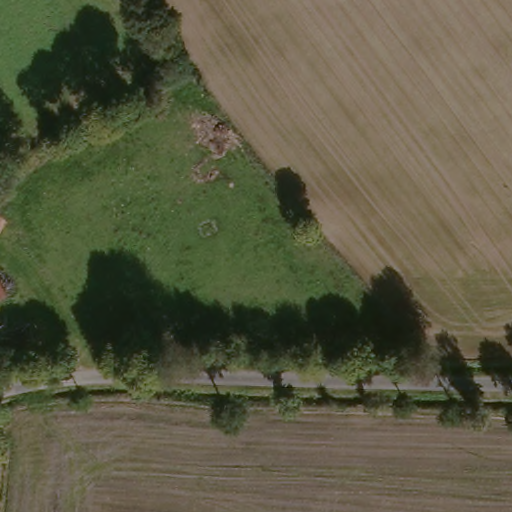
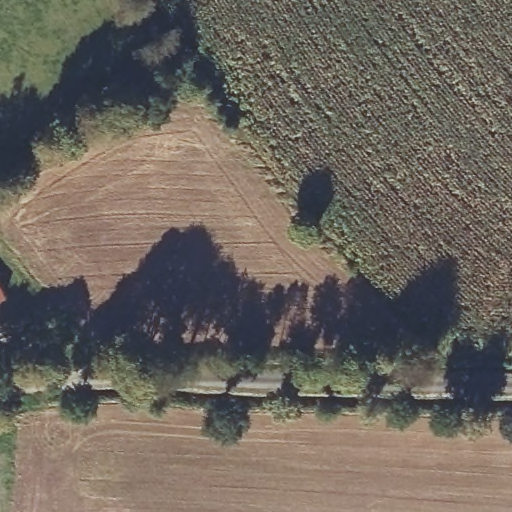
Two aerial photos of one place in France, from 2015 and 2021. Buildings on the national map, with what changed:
unchanged [(3,298),(0,300),(0,292),(3,298)]

